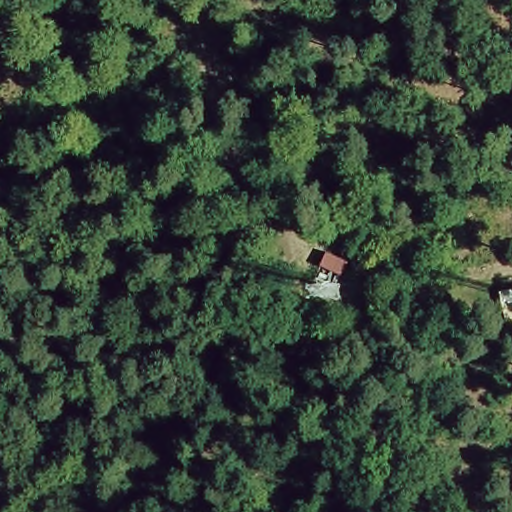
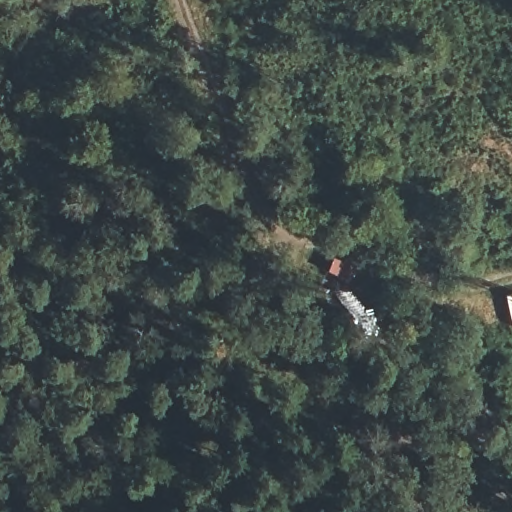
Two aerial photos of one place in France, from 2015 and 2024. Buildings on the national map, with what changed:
unchanged [(350,276),(329,266),(335,252),(357,262),(350,276)]

